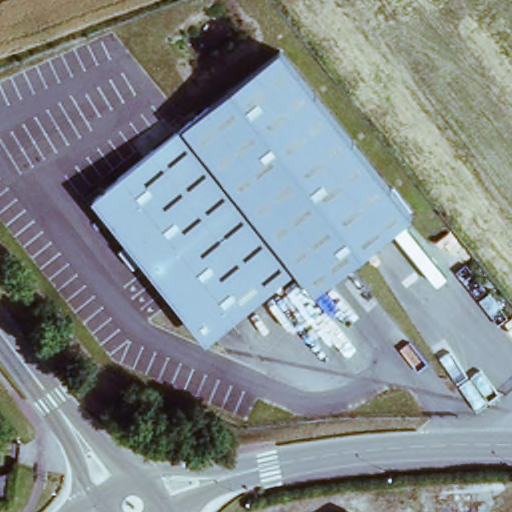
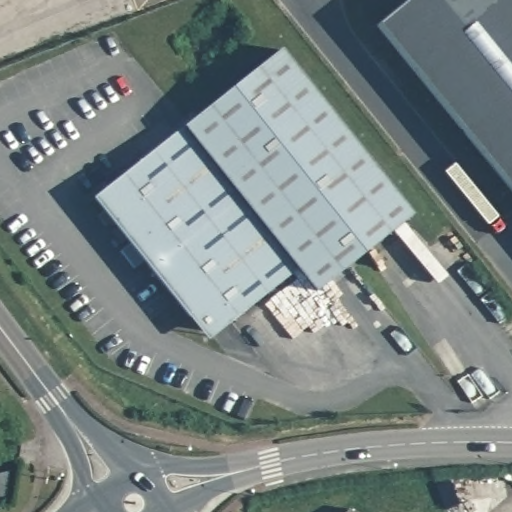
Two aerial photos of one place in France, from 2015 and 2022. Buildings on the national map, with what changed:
new [(378,24),(408,0),(512,0),(512,191),(378,24)]
unchanged [(279,46),(412,210),(318,286),(300,263),(210,337),(95,196),(279,46)]
unchanged [(352,507),(356,512),(346,512),(352,507)]

